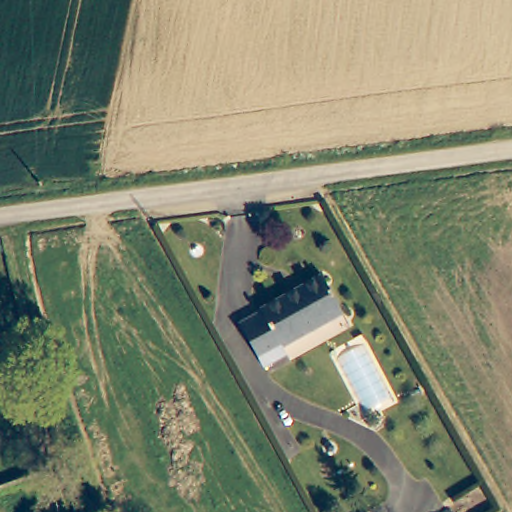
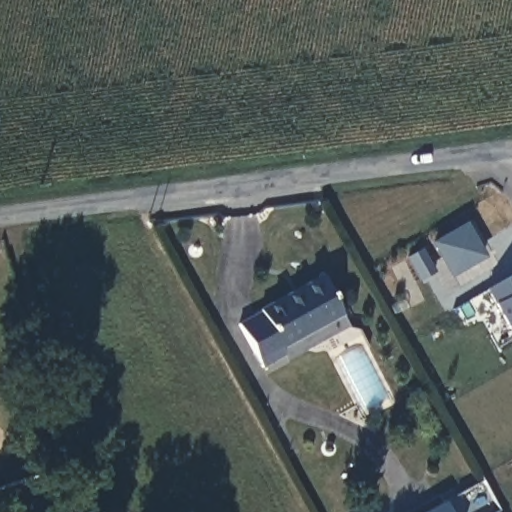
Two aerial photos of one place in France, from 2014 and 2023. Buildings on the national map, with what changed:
new [(451,276),(432,239),(465,220),(485,256),(451,276)]
unchanged [(244,324),(266,310),(264,307),(327,273),(348,311),(288,345),(291,353),(268,366),(244,324)]
new [(512,274),(512,335),(487,289),(512,274)]
new [(452,512),(425,512),(445,499),(452,512)]
unchanged [(364,512),(345,512),(360,504),(364,512)]

